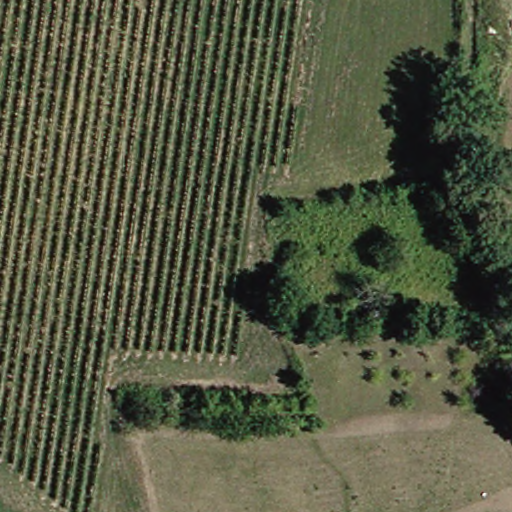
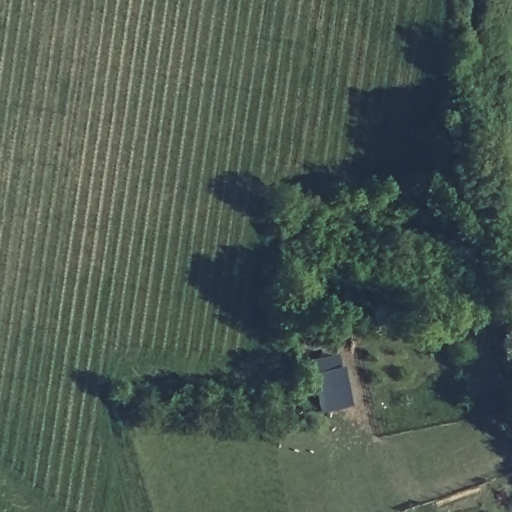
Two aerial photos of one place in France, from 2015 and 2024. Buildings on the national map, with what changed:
new [(345,369),(354,407),(322,415),(313,377),(345,369)]

